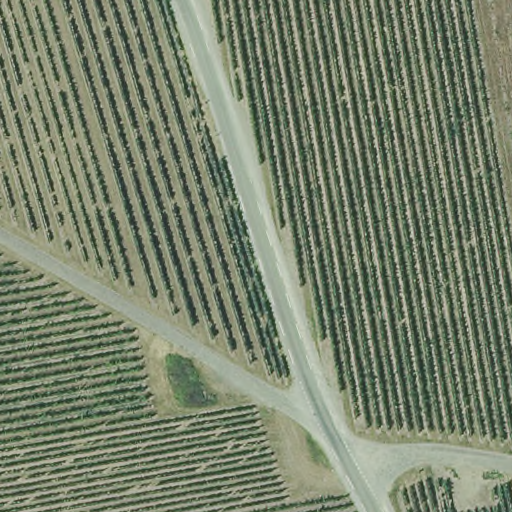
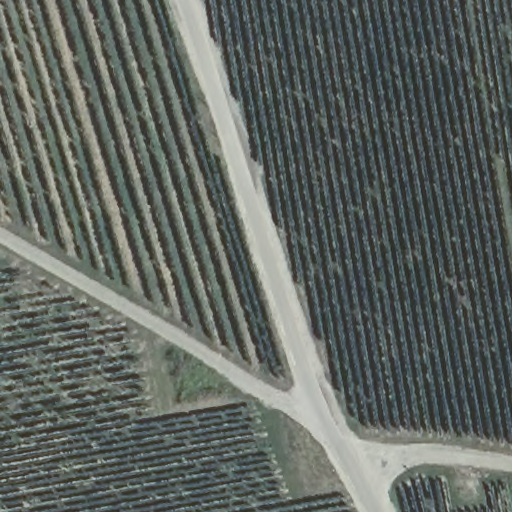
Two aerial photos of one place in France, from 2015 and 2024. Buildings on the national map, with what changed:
unchanged [(174,380),(172,370),(188,367),(190,378),(193,404),(178,406),(174,380)]

